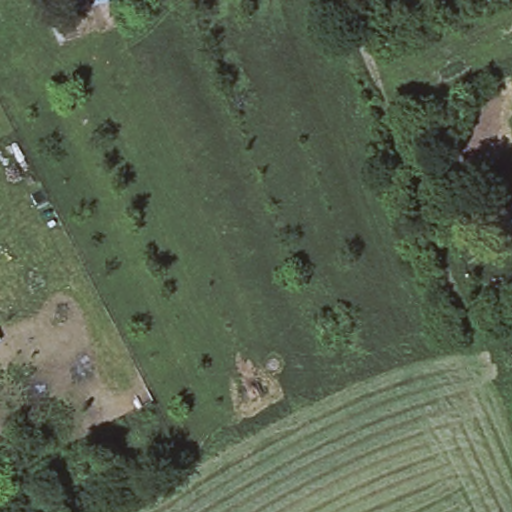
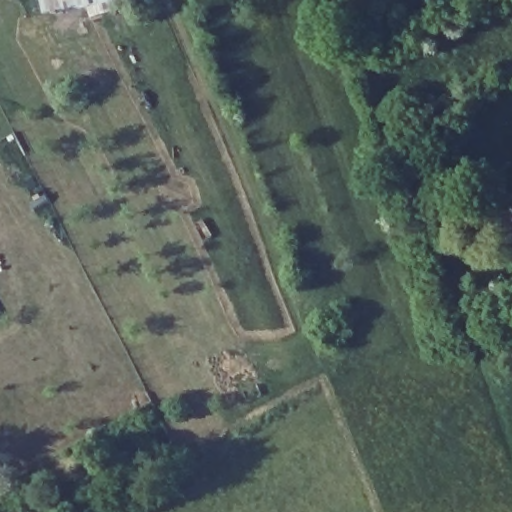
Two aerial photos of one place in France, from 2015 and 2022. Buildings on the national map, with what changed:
unchanged [(64,0),(113,0),(67,11),(64,0)]
unchanged [(512,204),(512,236),(497,214),(512,204)]

